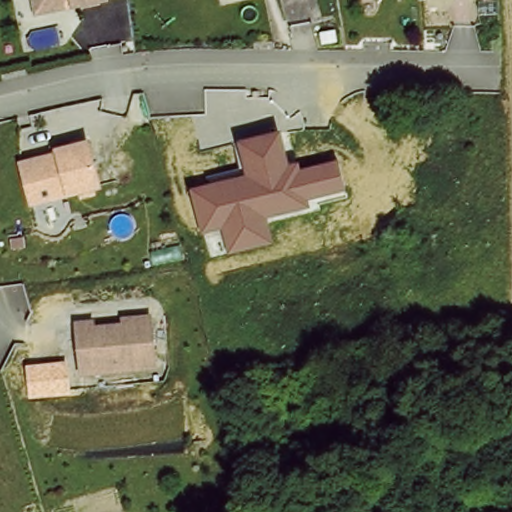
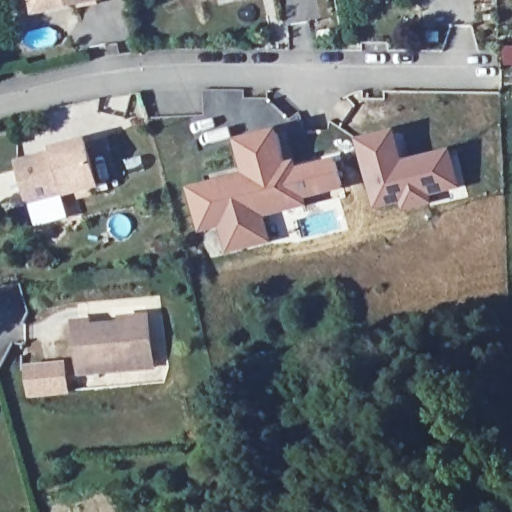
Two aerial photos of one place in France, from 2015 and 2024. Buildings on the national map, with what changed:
unchanged [(32,0),(91,0),(72,4),(60,6),(34,11),(32,0)]
unchanged [(278,132),(286,165),(296,162),(298,170),(338,159),(347,191),(308,200),(310,207),(265,219),(272,245),(226,255),(221,232),(201,236),(189,191),(245,178),(237,142),(278,132)]
new [(395,132),(405,162),(451,151),(462,189),(430,198),(432,205),(403,212),(400,205),(375,212),(359,141),(395,132)]
unchanged [(85,141),(96,185),(28,202),(20,168),(18,162),(55,153),(54,149),(85,141)]
unchanged [(152,367),(79,373),(74,323),(90,321),(91,327),(148,323),(152,367)]
unchanged [(65,360),(69,396),(29,398),(25,365),(65,360)]

